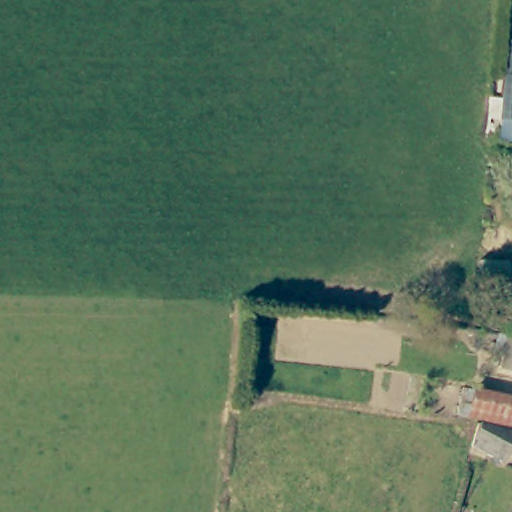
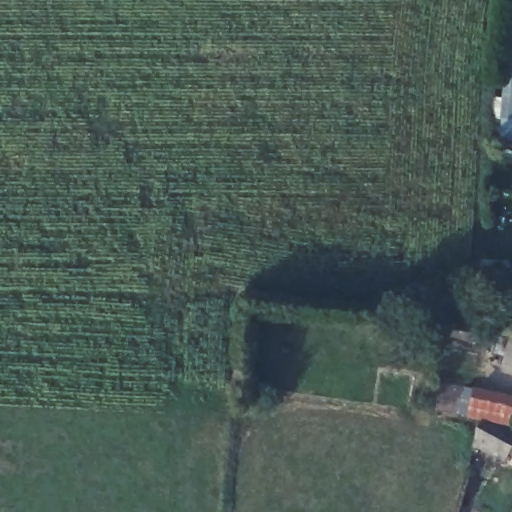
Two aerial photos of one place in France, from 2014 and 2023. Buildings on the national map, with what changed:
unchanged [(498,44),(512,45),(512,123),(493,121),(498,44)]
unchanged [(491,122),(512,125),(512,143),(490,141),(491,122)]
unchanged [(512,336),(512,369),(499,366),(506,334),(512,336)]
unchanged [(512,396),(512,410),(509,422),(466,412),(471,387),(512,396)]
unchanged [(507,426),(497,466),(486,463),(464,457),(474,422),(484,422),(507,426)]

